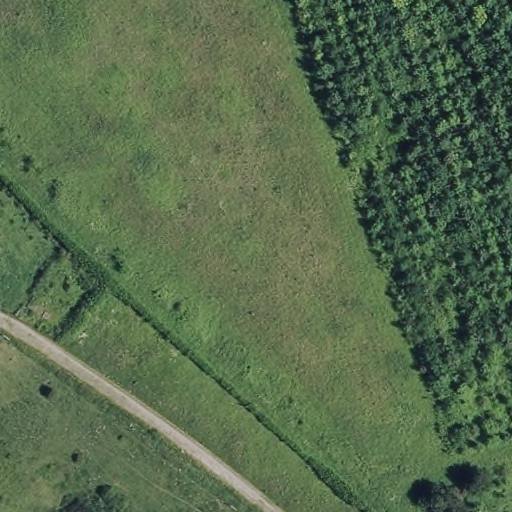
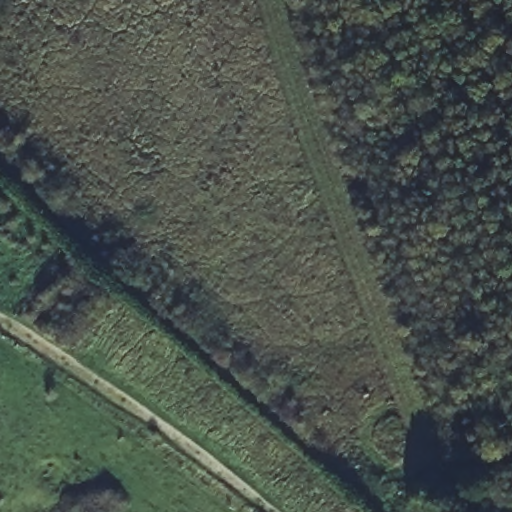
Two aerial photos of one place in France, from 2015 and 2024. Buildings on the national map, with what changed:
[]

